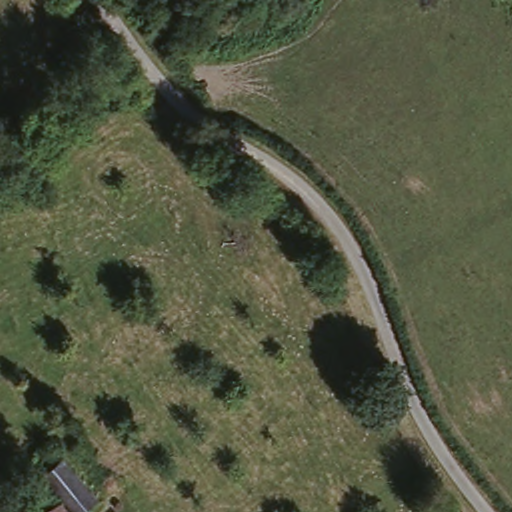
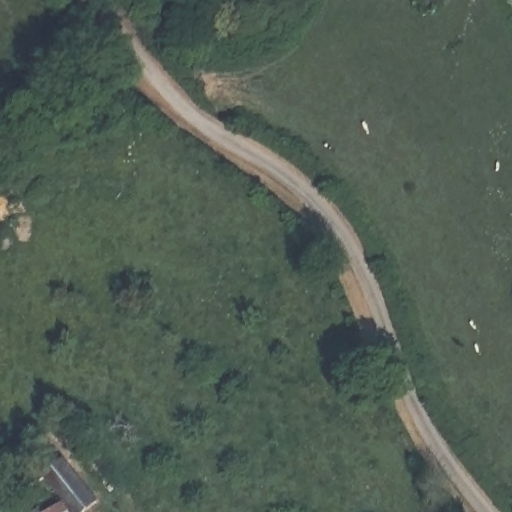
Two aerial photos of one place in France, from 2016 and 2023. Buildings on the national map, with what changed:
unchanged [(0,505),(49,473),(37,458),(55,441),(106,507),(99,512),(0,512),(0,505)]

